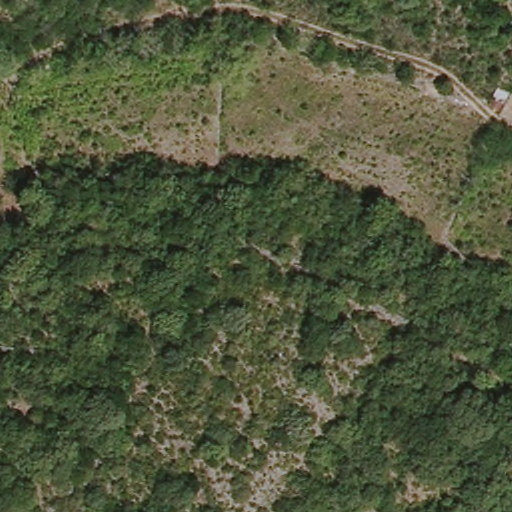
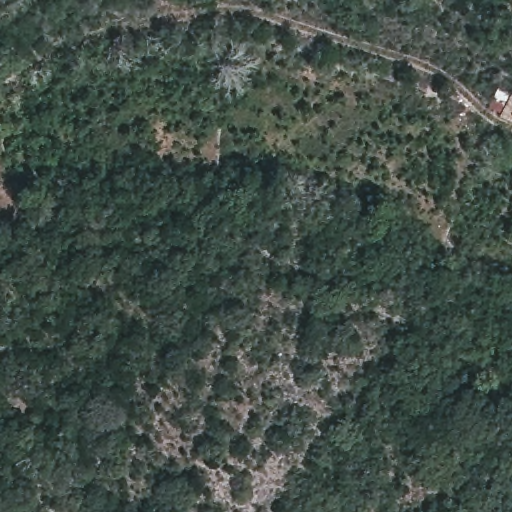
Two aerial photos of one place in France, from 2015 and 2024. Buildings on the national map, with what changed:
unchanged [(505,85),(512,88),(512,119),(493,110),(505,85)]

